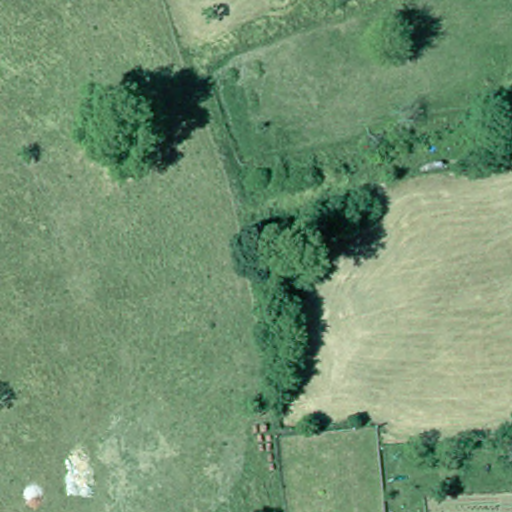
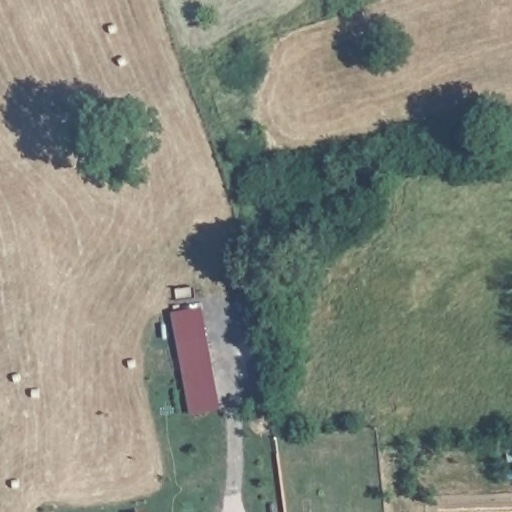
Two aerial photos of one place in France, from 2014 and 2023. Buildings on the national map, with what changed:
new [(191,415),(172,312),(203,306),(223,409),(191,415)]

